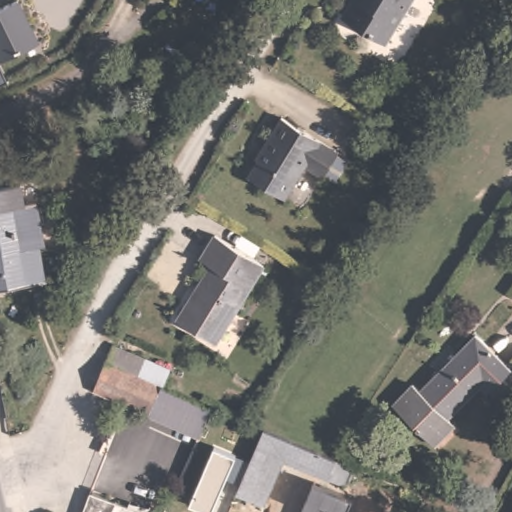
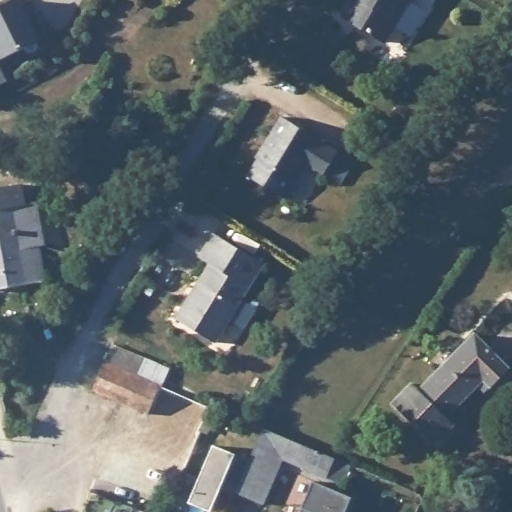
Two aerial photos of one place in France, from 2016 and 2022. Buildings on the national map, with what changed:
unchanged [(0,62),(0,61),(0,7),(14,0),(22,0),(42,42),(0,62)]
unchanged [(386,45),(342,18),(353,0),(413,0),(386,45)]
unchanged [(0,87),(0,70),(7,83),(0,87)]
unchanged [(336,154),(321,180),(303,169),(285,200),(247,178),(263,150),(261,149),(279,120),(336,154)]
unchanged [(75,147),(78,162),(62,165),(48,169),(45,153),(75,147)]
unchanged [(0,287),(0,187),(19,183),(23,203),(35,200),(44,241),(40,242),(38,242),(44,278),(25,281),(0,287)]
unchanged [(214,236),(262,265),(216,340),(176,317),(189,298),(210,264),(199,258),(214,236)]
unchanged [(482,384),(446,420),(420,395),(474,338),(509,372),(491,392),(482,384)]
unchanged [(115,341),(170,365),(164,381),(121,362),(109,357),(115,341)]
unchanged [(152,409),(132,399),(97,384),(109,357),(121,362),(164,381),(152,409)]
unchanged [(199,431),(152,409),(164,381),(211,402),(199,431)]
unchanged [(446,420),(454,429),(437,447),(394,404),(412,386),(420,395),(446,420)]
unchanged [(346,486),(325,476),(283,458),(264,503),(236,491),(264,428),(282,436),(296,441),(318,451),(333,457),(355,468),(346,486)]
unchanged [(225,474),(210,507),(190,500),(214,445),(232,453),(250,459),(240,481),(225,474)]
unchanged [(314,482),(352,497),(347,512),(301,512),(303,508),(314,482)]
unchanged [(145,512),(77,512),(90,486),(145,512)]

